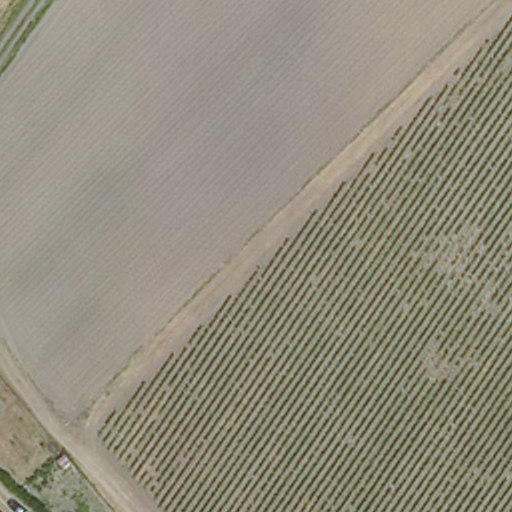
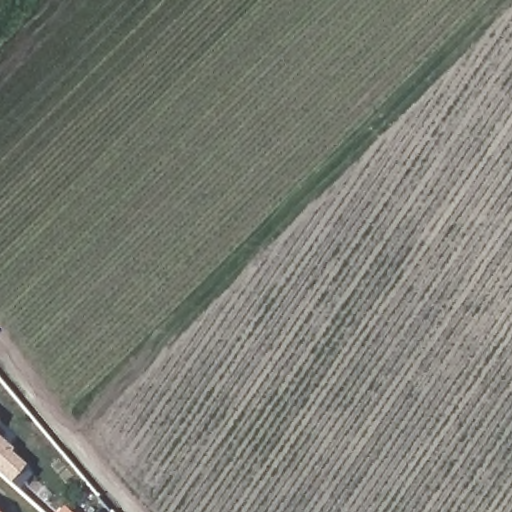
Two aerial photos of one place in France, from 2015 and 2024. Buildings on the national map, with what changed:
new [(6,481),(0,475),(0,440),(10,448),(8,451),(23,463),(6,481)]

